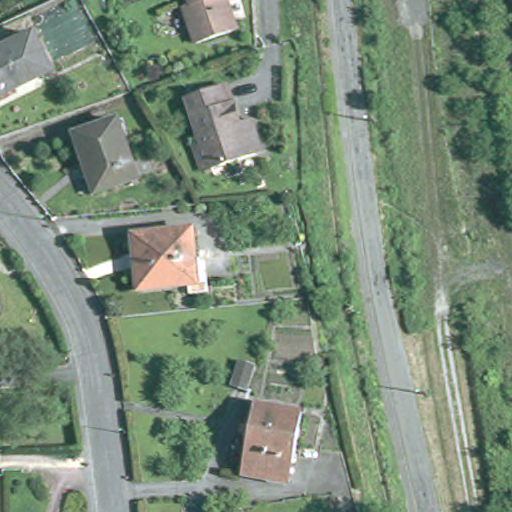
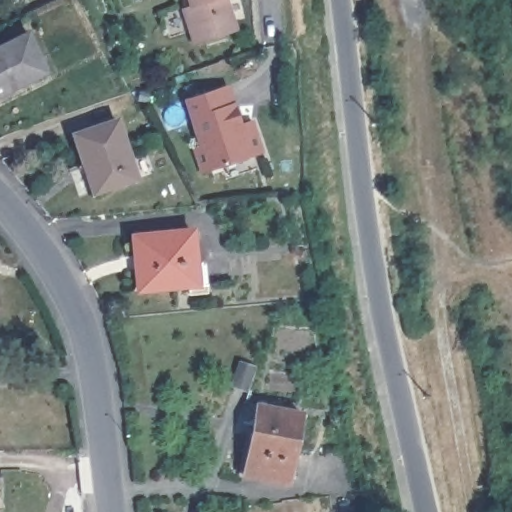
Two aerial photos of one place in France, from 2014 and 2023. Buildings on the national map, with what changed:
unchanged [(228,0),(239,33),(197,47),(185,12),(192,10),(189,0),(228,0)]
unchanged [(48,72),(0,94),(0,48),(31,34),(48,72)]
unchanged [(257,154),(205,170),(197,146),(203,144),(188,97),(230,85),(242,122),(252,119),(262,152),(257,154)]
unchanged [(119,119),(137,177),(94,191),(77,130),(119,119)]
unchanged [(188,229),(192,282),(136,287),(131,234),(188,229)]
unchanged [(253,362),(247,387),(232,384),(237,358),(253,362)]
unchanged [(304,413),(289,482),(246,470),(261,403),(304,413)]
unchanged [(210,508),(242,506),(243,512),(210,512),(210,508)]

